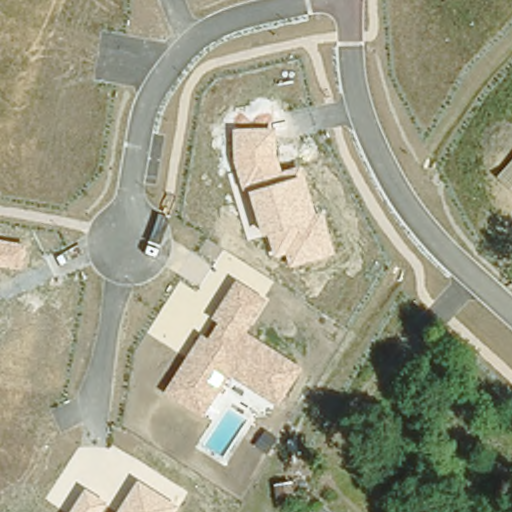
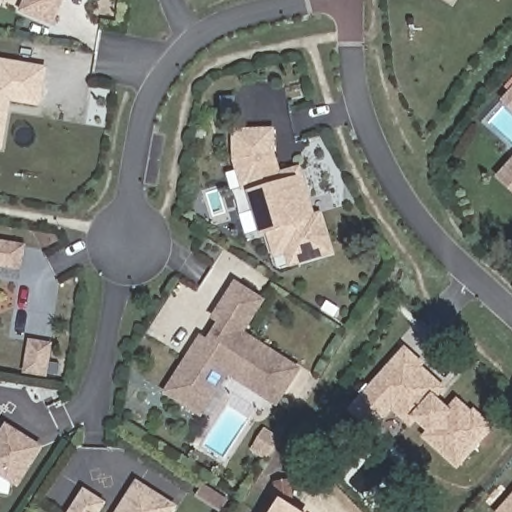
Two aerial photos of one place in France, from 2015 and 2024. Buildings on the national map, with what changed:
new [(52,25),(19,11),(24,0),(63,0),(52,25)]
new [(46,66),(40,106),(10,102),(2,150),(0,150),(0,59),(46,66)]
new [(512,90),(512,110),(502,101),(512,90)]
unchanged [(290,266),(285,254),(275,257),(265,233),(259,235),(247,192),(242,192),(235,165),(235,129),(273,128),(275,154),(281,172),(301,167),(315,213),(321,211),(333,253),(290,266)]
unchanged [(512,162),(512,192),(496,179),(512,162)]
unchanged [(22,271),(0,267),(0,241),(27,245),(22,271)]
unchanged [(277,407),(227,377),(200,418),(162,394),(200,334),(206,338),(216,321),(211,317),(235,279),(266,300),(245,334),(300,369),(277,407)]
new [(21,374),(27,338),(52,342),(46,376),(21,374)]
new [(471,411),(474,407),(495,427),(457,471),(421,436),(426,430),(415,421),(410,427),(395,414),(376,434),(348,409),(405,346),(425,365),(423,367),(445,388),(439,398),(447,406),(457,397),(471,411)]
new [(6,422),(45,447),(18,487),(9,481),(7,495),(0,495),(0,432),(6,422)]
new [(249,450),(263,427),(280,437),(265,460),(249,450)]
unchanged [(117,512),(137,480),(179,507),(176,512),(117,512)]
unchanged [(109,502),(102,512),(68,512),(85,486),(109,502)]
new [(512,512),(498,512),(512,496),(512,512)]
new [(303,512),(272,512),(281,498),(303,512)]

